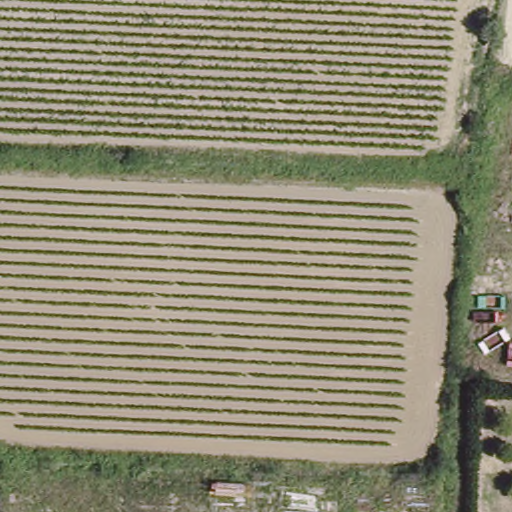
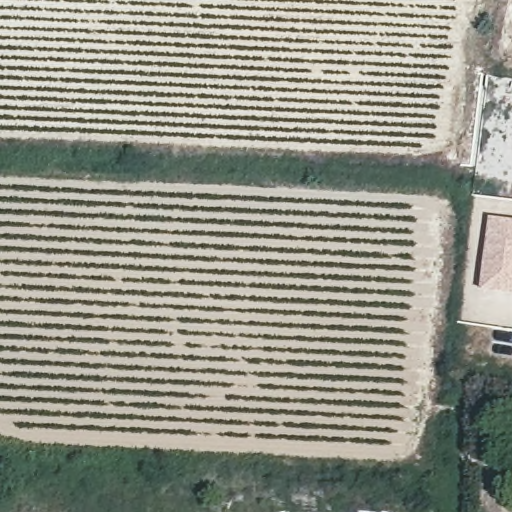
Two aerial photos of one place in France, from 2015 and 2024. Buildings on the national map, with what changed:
new [(490,217),(512,220),(512,292),(482,288),(490,217)]

